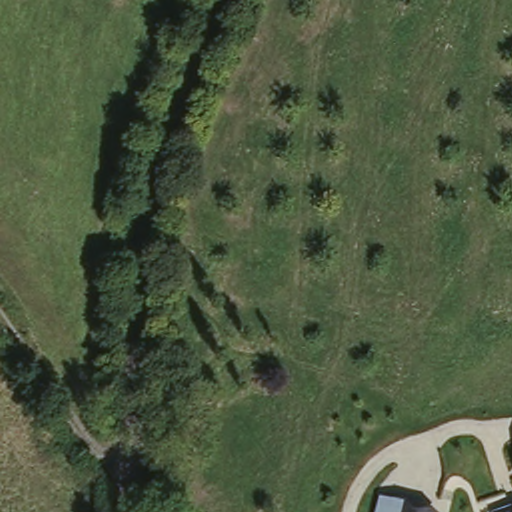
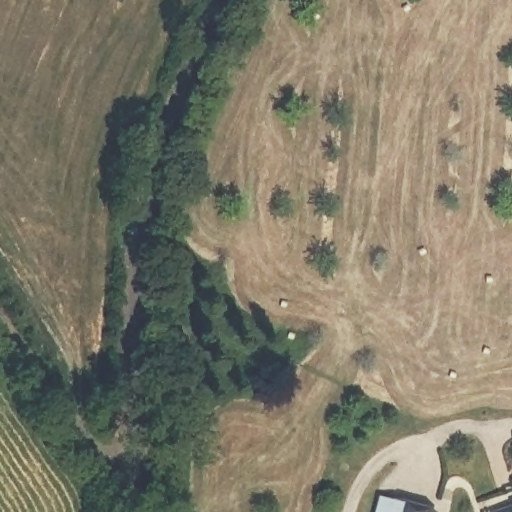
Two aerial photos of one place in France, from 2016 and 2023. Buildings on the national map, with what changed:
unchanged [(511,438),(512,438),(512,443),(511,438)]
unchanged [(395,512),(373,512),(375,499),(397,505),(395,512)]
unchanged [(423,512),(395,512),(397,505),(423,512)]

